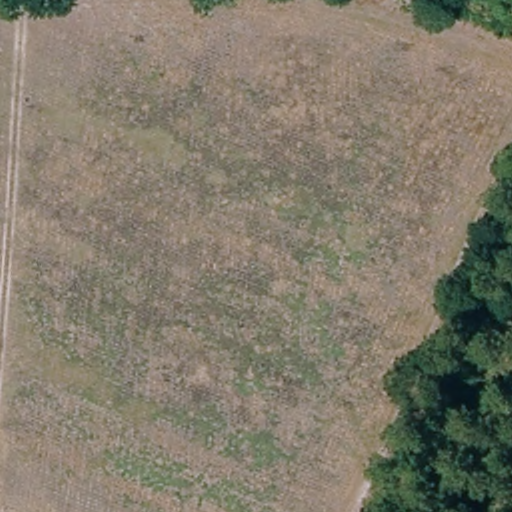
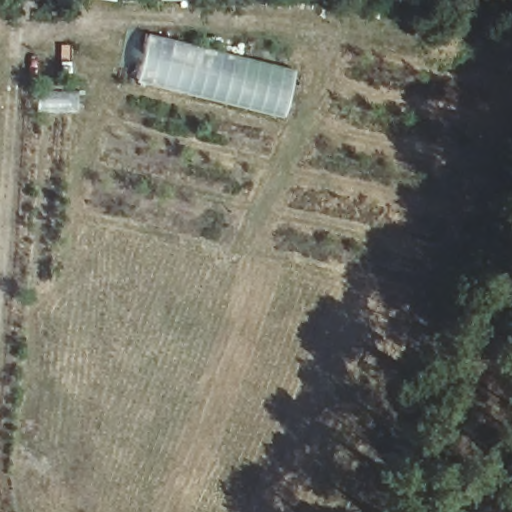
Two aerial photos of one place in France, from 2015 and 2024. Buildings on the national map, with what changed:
demolished [(53,24),(58,0),(99,0),(94,30),(53,24)]
new [(282,116),(137,79),(148,32),(294,68),(282,116)]

